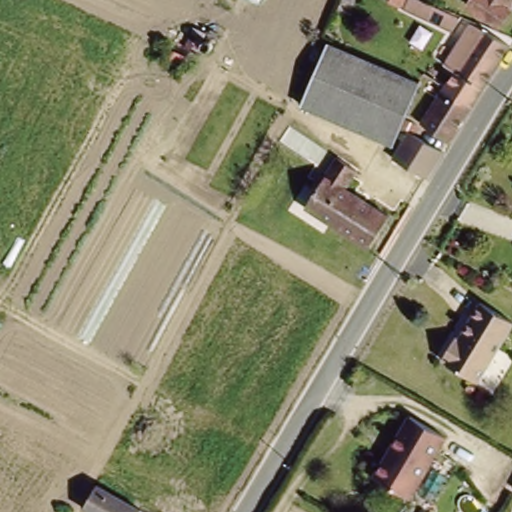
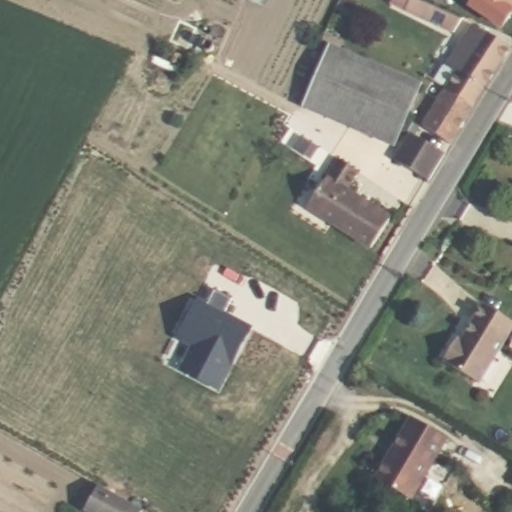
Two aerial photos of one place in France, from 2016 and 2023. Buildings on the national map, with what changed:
unchanged [(267,4),(255,0),(269,0),(267,4)]
unchanged [(459,14),(456,27),(406,8),(409,0),(421,0),(459,14)]
unchanged [(509,1),(512,4),(512,7),(503,22),(486,11),(471,2),(472,0),(509,0),(509,1)]
unchanged [(461,66),(454,60),(458,52),(454,51),(474,22),(510,42),(471,101),(449,84),(461,66)]
unchanged [(302,98),(328,39),(400,71),(416,78),(420,80),(394,138),(358,122),(302,98)]
unchanged [(449,84),(471,101),(464,114),(449,138),(423,123),(449,84)]
unchanged [(388,154),(404,127),(439,148),(423,175),(388,154)]
unchanged [(360,170),(346,189),(376,209),(376,208),(389,217),(369,247),(307,204),(340,156),(360,170)]
new [(198,300),(204,304),(213,287),(231,297),(223,313),(248,327),(229,362),(226,360),(221,368),(226,370),(216,387),(181,368),(193,344),(178,336),(198,300)]
unchanged [(512,337),(485,381),(446,358),(461,334),(464,337),(486,301),(512,317),(512,337)]
unchanged [(447,433),(412,492),(376,471),(411,412),(447,433)]
unchanged [(145,509),(143,512),(98,512),(89,507),(103,485),(145,509)]

